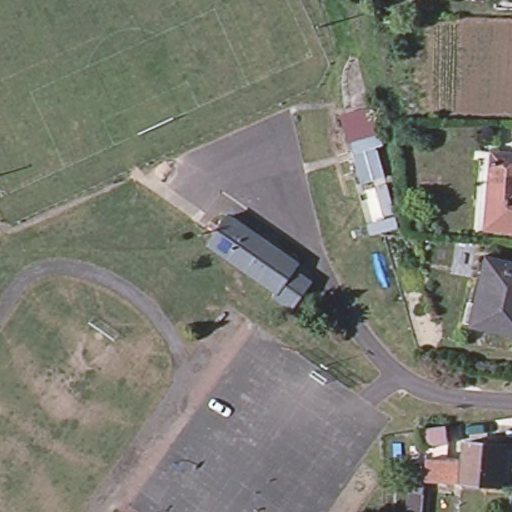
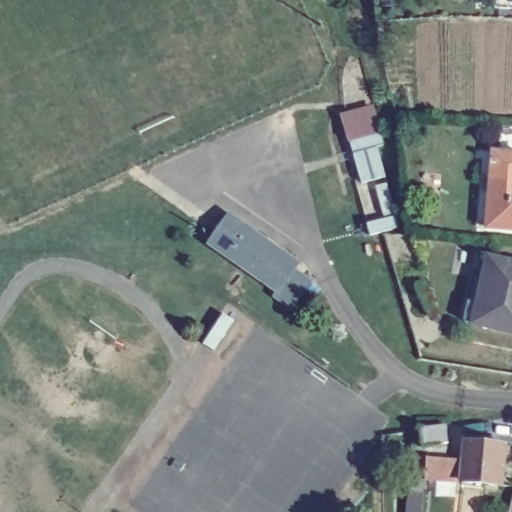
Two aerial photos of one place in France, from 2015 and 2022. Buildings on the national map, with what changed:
unchanged [(338,111),(369,106),(393,182),(362,193),(338,111)]
unchanged [(492,154),(512,155),(512,189),(489,187),(492,154)]
unchanged [(489,187),(512,189),(512,232),(485,230),(489,187)]
unchanged [(291,307),(271,293),(275,289),(208,244),(226,217),(295,263),(291,269),(309,281),(291,307)]
unchanged [(492,260),(512,265),(512,333),(468,324),(472,305),(481,307),(492,260)]
unchanged [(452,450),(425,454),(423,438),(450,433),(452,450)]
unchanged [(461,441),(461,438),(478,439),(478,442),(495,443),(491,483),(455,481),(456,441),(461,441)]
unchanged [(450,459),(448,480),(418,478),(420,457),(450,459)]

